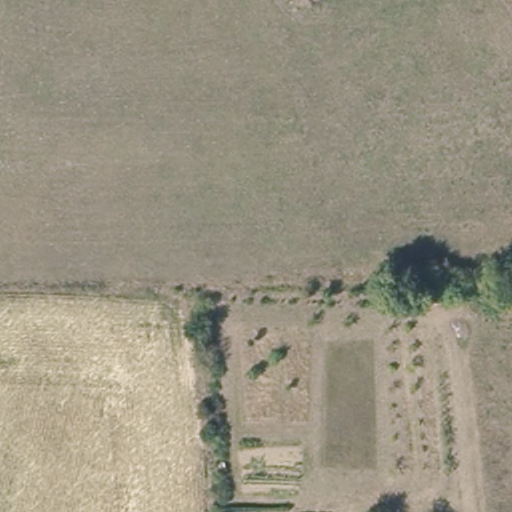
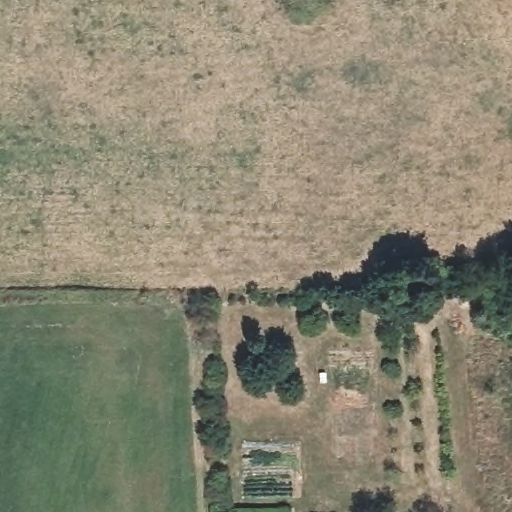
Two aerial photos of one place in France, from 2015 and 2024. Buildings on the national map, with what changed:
[]

